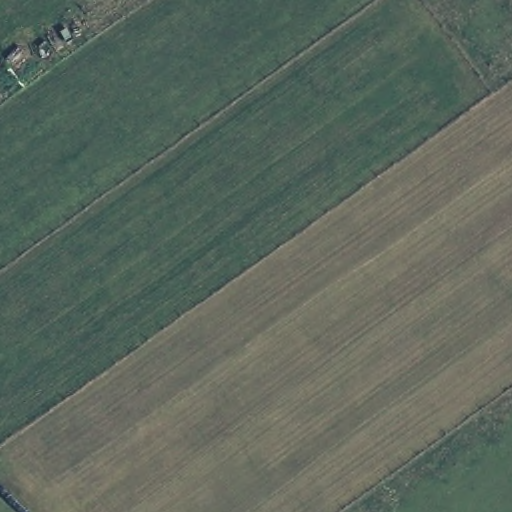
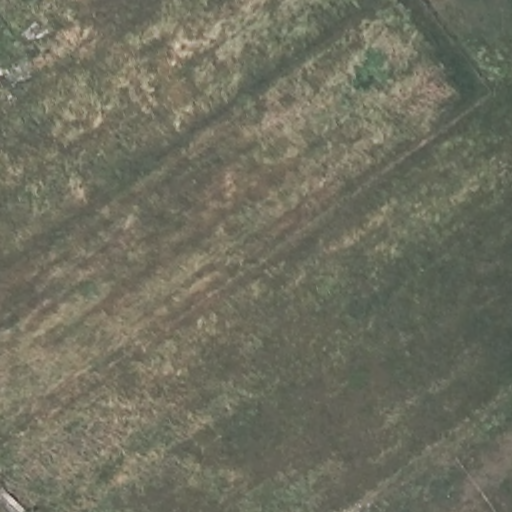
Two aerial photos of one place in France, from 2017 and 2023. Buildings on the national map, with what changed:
[]

